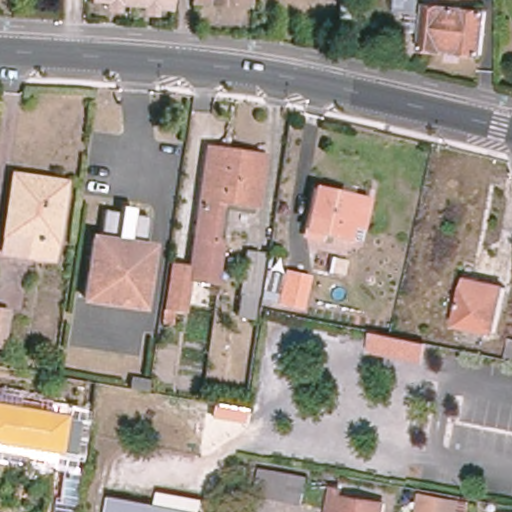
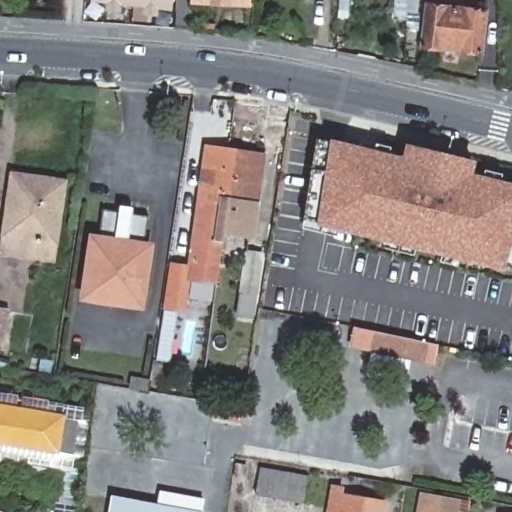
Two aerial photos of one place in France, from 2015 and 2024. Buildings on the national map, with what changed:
unchanged [(171,10),(135,6),(93,1),(94,0),(172,0),(171,10)]
unchanged [(193,0),(250,0),(250,4),(193,1),(193,0)]
unchanged [(443,51),(422,48),(427,5),(487,12),(482,55),(461,53),(461,51),(444,49),(443,51)]
new [(305,222),(318,137),(401,157),(404,144),(475,161),(472,174),(512,184),(512,272),(305,222)]
unchanged [(266,156),(258,206),(224,201),(218,240),(224,241),(217,284),(192,280),(186,312),(165,308),(172,265),(190,267),(197,223),(208,148),(266,156)]
unchanged [(6,239),(14,175),(66,183),(57,246),(55,260),(4,253),(6,239)]
demolished [(359,229),(348,227),(345,240),(316,233),(314,240),(300,237),(311,187),(365,200),(359,229)]
new [(252,239),(225,235),(224,241),(218,240),(224,201),(258,206),(252,239)]
unchanged [(94,238),(152,247),(143,308),(85,299),(94,238)]
unchanged [(258,255),(249,318),(234,316),(244,252),(258,255)]
demolished [(305,277),(298,309),(275,304),(282,272),(305,277)]
demolished [(503,286),(493,333),(454,325),(464,277),(503,286)]
unchanged [(5,347),(0,346),(0,310),(10,312),(5,347)]
unchanged [(424,361),(374,350),(377,332),(393,335),(428,343),(424,361)]
unchanged [(0,405),(70,416),(65,452),(0,442),(0,405)]
unchanged [(63,463),(0,453),(0,442),(65,452),(63,463)]
unchanged [(311,476),(306,505),(257,496),(262,468),(311,476)]
unchanged [(342,495),(387,503),(386,512),(330,512),(334,488),(343,489),(342,495)]
unchanged [(460,502),(458,512),(420,512),(423,495),(460,502)]
unchanged [(111,512),(113,500),(179,512),(111,512)]

